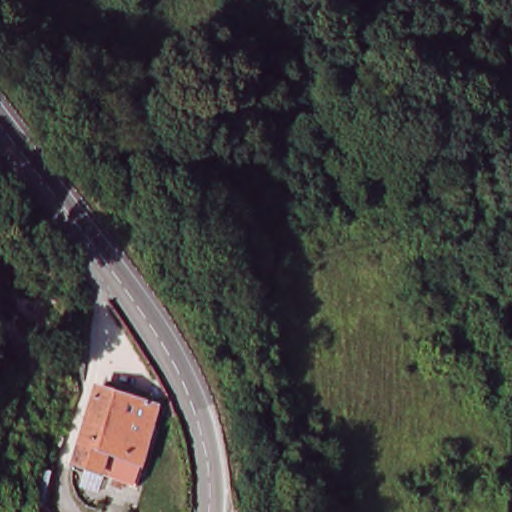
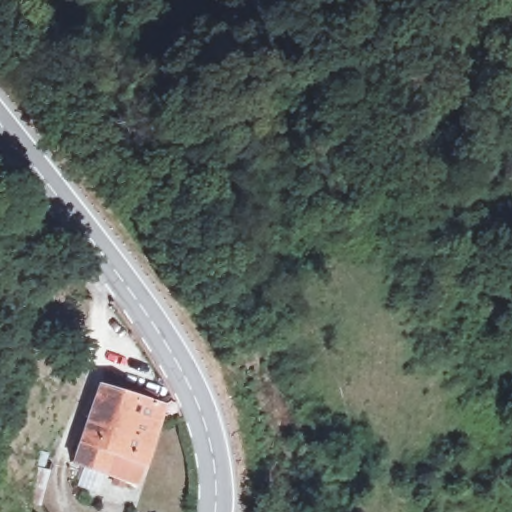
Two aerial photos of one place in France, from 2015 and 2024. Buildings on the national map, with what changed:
unchanged [(138,487),(72,465),(94,385),(122,394),(125,384),(154,391),(152,403),(156,405),(138,487)]

